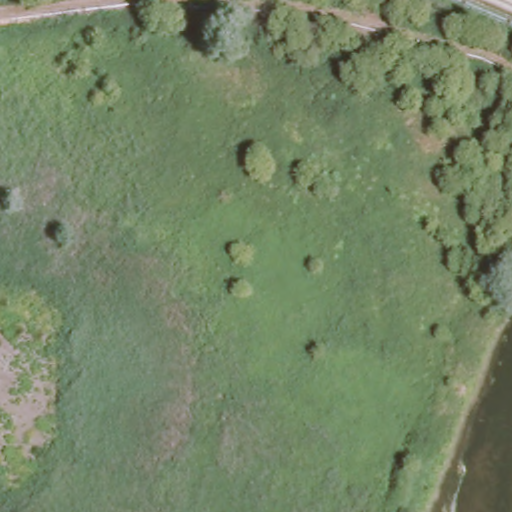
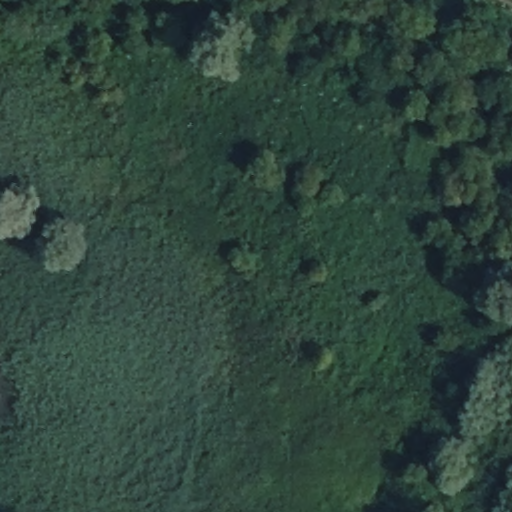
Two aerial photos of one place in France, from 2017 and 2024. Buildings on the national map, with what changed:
[]

